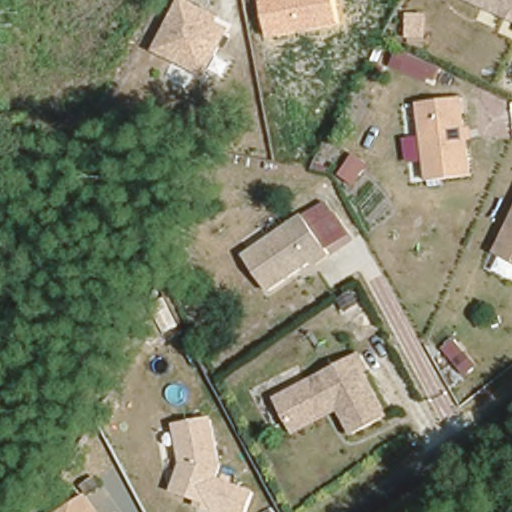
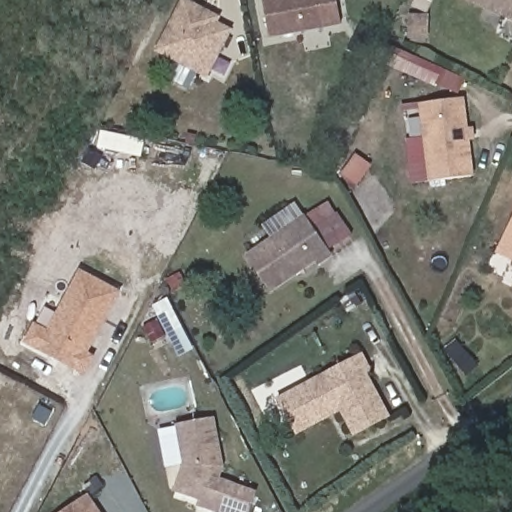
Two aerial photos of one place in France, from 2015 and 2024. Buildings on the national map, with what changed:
unchanged [(206,78),(154,51),(180,0),(185,0),(221,18),(219,24),(232,30),(206,78)]
unchanged [(342,27),(270,40),(262,0),(337,0),(342,27)]
unchanged [(512,12),(506,10),(501,12),(474,0),(512,0),(512,12)]
unchanged [(461,100),(472,176),(430,182),(420,105),(461,100)]
unchanged [(328,201),(353,235),(327,250),(303,216),(328,201)]
unchanged [(301,212),(303,216),(327,250),(314,260),(312,256),(267,288),(242,255),(301,212)]
unchanged [(512,224),(512,259),(498,252),(512,224)]
new [(122,292),(89,353),(96,357),(85,376),(25,342),(45,307),(56,312),(80,269),(122,292)]
new [(156,341),(147,323),(159,317),(152,306),(167,298),(193,350),(177,357),(166,335),(156,341)]
unchanged [(292,432),(275,398),(356,355),(365,370),(360,372),(383,416),(350,433),(336,408),(323,415),(292,432)]
unchanged [(211,417),(221,464),(216,477),(231,482),(222,509),(206,504),(208,498),(175,487),(185,461),(177,423),(211,417)]
new [(208,512),(199,509),(200,502),(206,504),(222,509),(231,482),(256,491),(248,512),(208,512)]
unchanged [(97,512),(51,512),(83,492),(97,512)]

